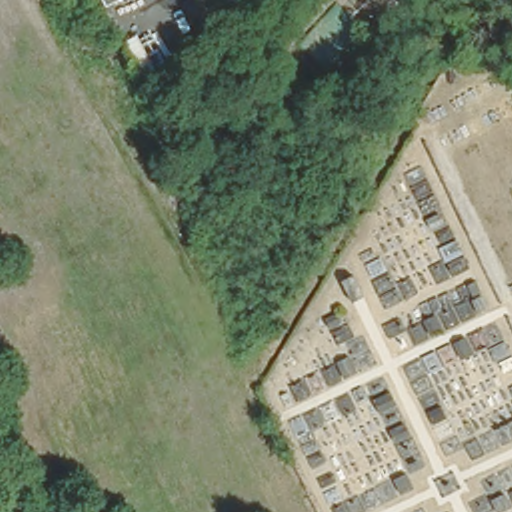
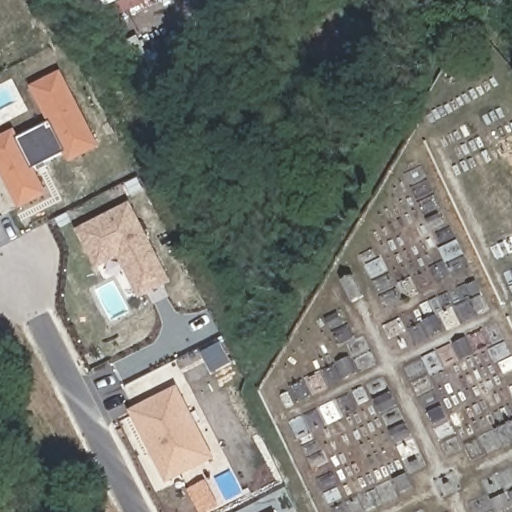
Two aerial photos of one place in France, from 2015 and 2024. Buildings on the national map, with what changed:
new [(13,128),(18,139),(47,124),(28,86),(60,70),(100,147),(69,163),(64,153),(34,168),(49,193),(18,210),(0,175),(0,135),(13,128)]
new [(130,202),(171,283),(138,299),(117,258),(96,269),(76,230),(130,202)]
new [(127,410),(177,385),(214,459),(165,484),(127,410)]
new [(210,512),(197,512),(186,490),(205,480),(219,507),(210,512)]

